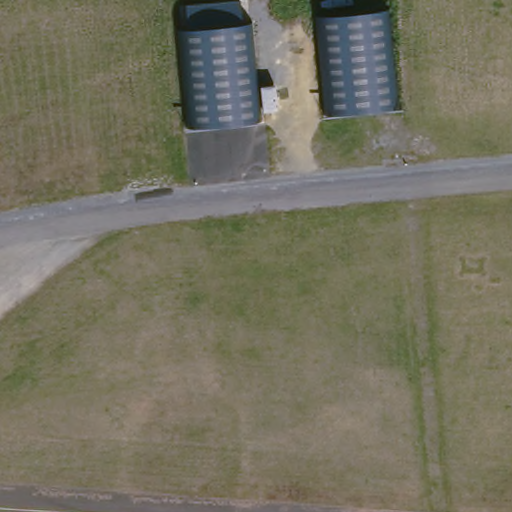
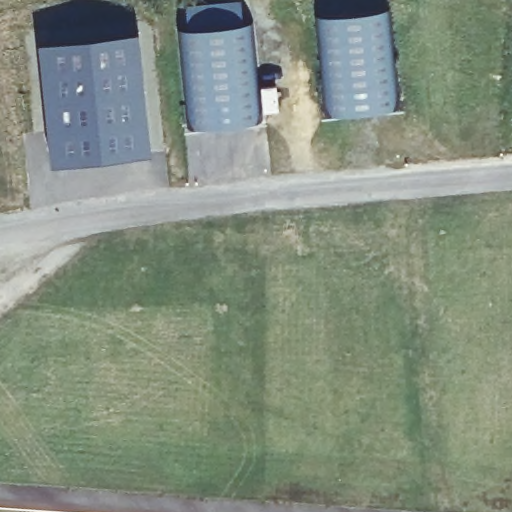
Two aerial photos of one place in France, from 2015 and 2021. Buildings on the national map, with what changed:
unchanged [(317,12),(389,8),(399,104),(328,115),(317,12)]
unchanged [(180,29),(252,23),(262,120),(189,127),(180,29)]
new [(138,32),(151,154),(51,165),(39,44),(138,32)]

